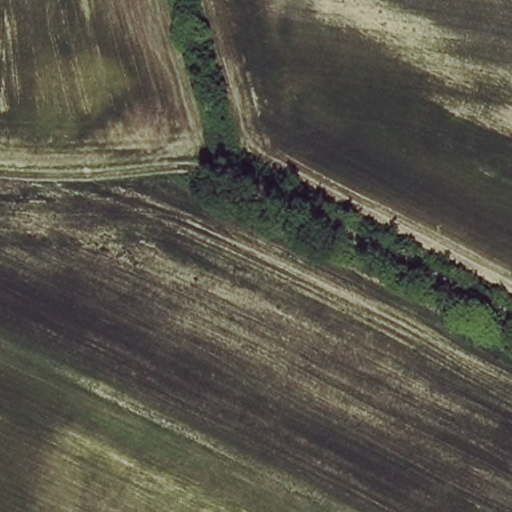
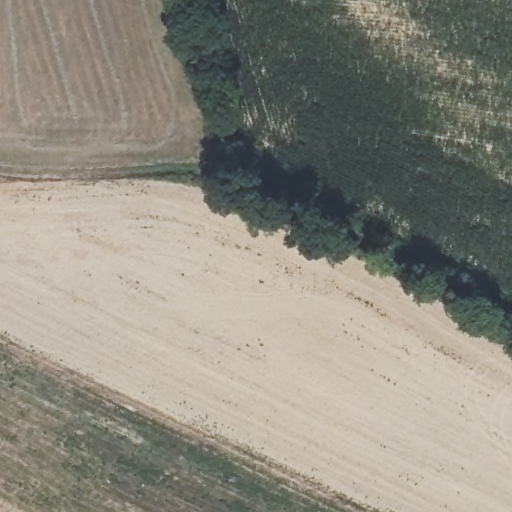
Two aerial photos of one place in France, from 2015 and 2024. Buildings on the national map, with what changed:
[]

